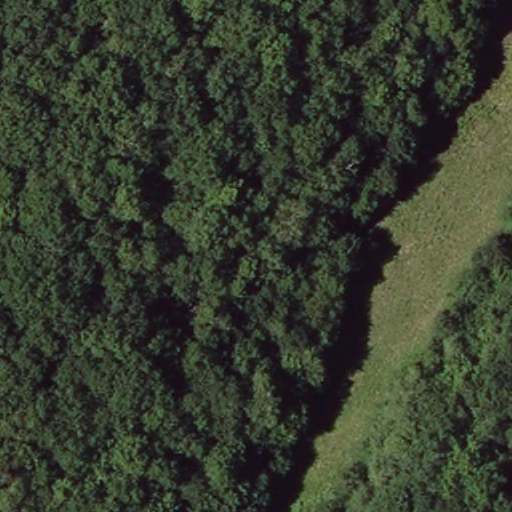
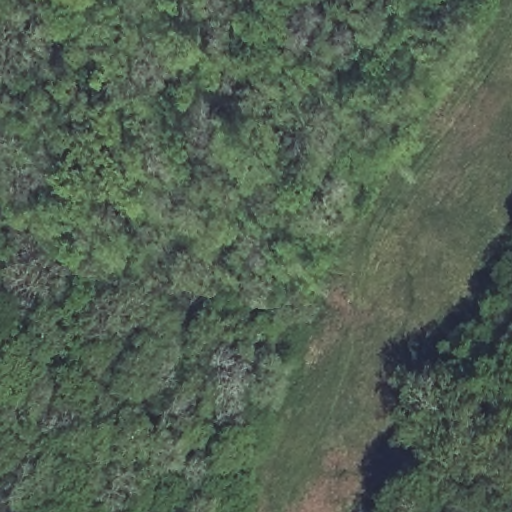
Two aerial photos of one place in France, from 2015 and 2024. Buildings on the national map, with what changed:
[]

